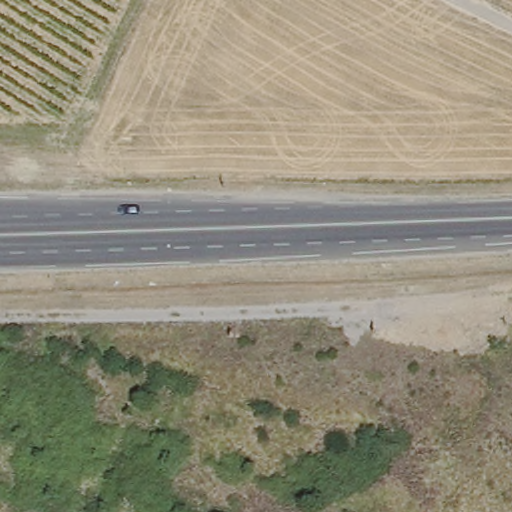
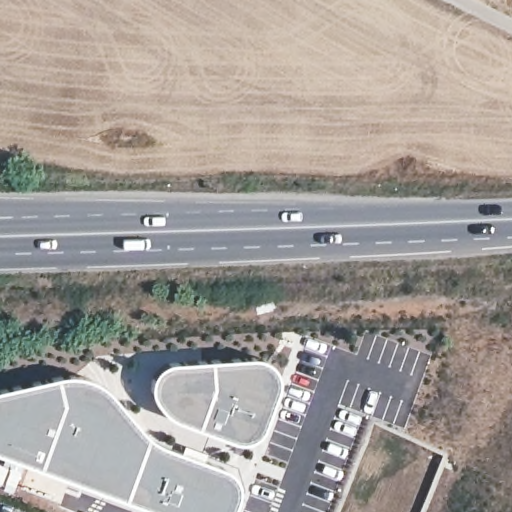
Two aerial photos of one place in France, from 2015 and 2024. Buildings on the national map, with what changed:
new [(178,419),(162,407),(155,398),(152,387),(154,380),(162,370),(176,363),(254,358),(268,361),(275,371),(276,379),(272,404),(265,426),(255,437),(240,442),(230,439),(226,431),(233,403),(212,395),(196,426),(178,419)]
new [(91,379),(99,384),(123,408),(161,447),(216,463),(229,470),(235,481),(235,498),(229,512),(172,512),(0,450),(0,391),(72,376),(91,379)]

